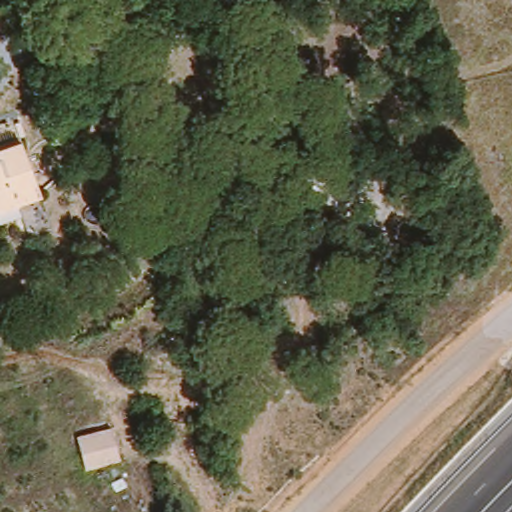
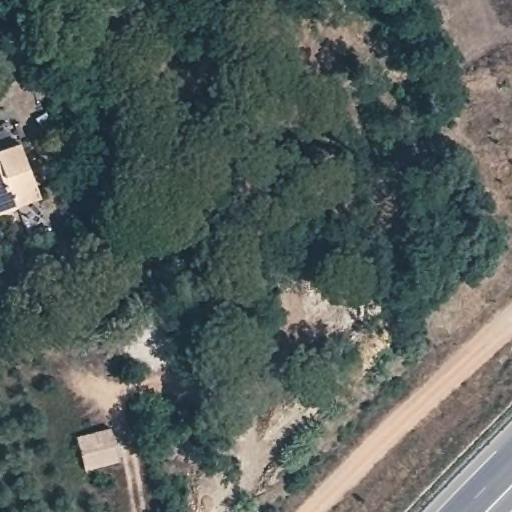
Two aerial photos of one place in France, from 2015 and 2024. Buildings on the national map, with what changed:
unchanged [(0,210),(0,149),(25,139),(43,177),(48,189),(26,199),(0,210)]
unchanged [(85,472),(77,438),(111,430),(118,463),(85,472)]

